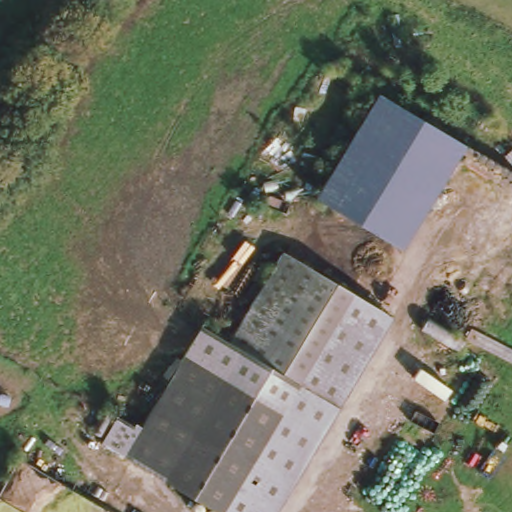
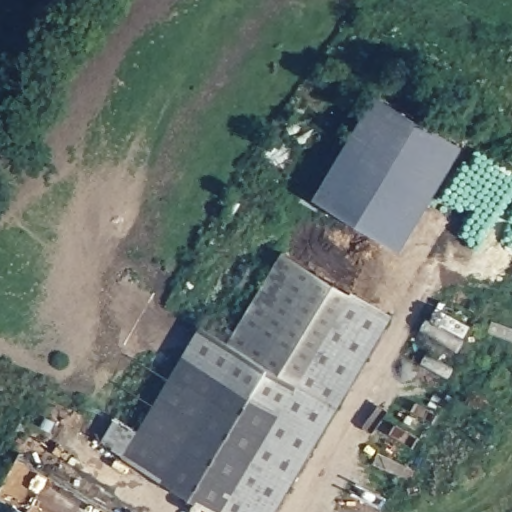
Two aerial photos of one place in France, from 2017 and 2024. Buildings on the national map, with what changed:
unchanged [(375,95),(464,144),(401,250),(312,197),(375,95)]
unchanged [(272,512),(228,512),(87,432),(104,403),(137,419),(195,323),(226,338),(280,246),(389,310),(272,512)]

